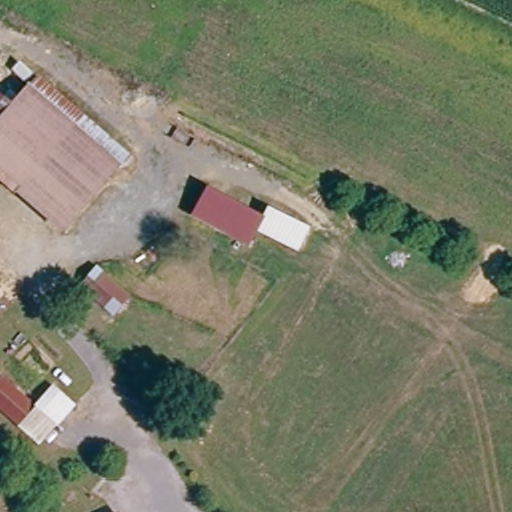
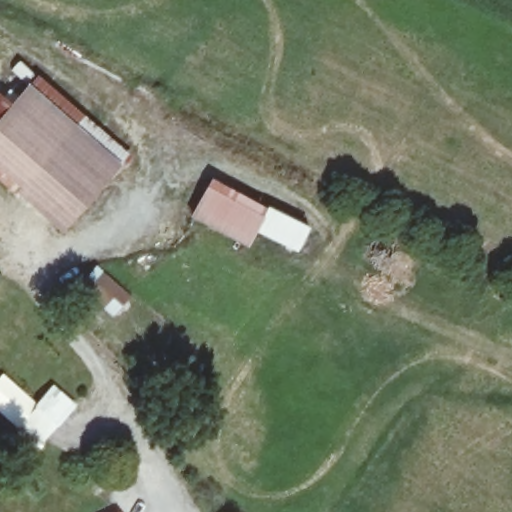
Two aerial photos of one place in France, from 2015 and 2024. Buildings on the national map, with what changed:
unchanged [(125,156),(114,168),(27,90),(36,79),(125,156)]
unchanged [(0,120),(27,90),(114,168),(63,224),(55,216),(0,168),(0,120)]
unchanged [(255,230),(248,245),(192,215),(206,186),(262,216),(267,206),(308,226),(297,252),(255,230)]
unchanged [(129,295),(111,317),(76,285),(94,265),(129,295)]
unchanged [(16,426),(0,412),(0,377),(34,406),(16,426)]

